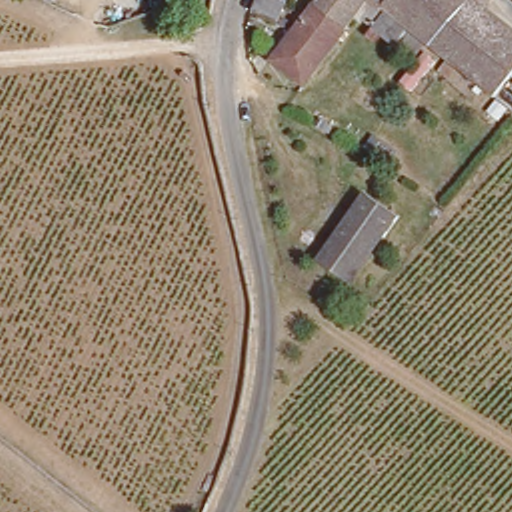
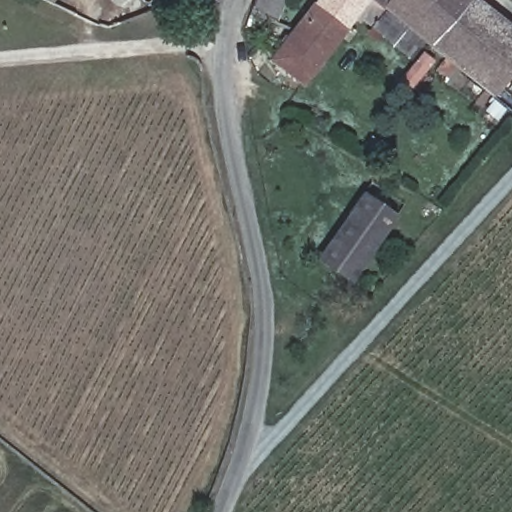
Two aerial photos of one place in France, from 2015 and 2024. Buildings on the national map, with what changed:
unchanged [(43,0),(58,0),(54,5),(43,0)]
unchanged [(251,10),(255,0),(285,0),(276,20),(251,10)]
unchanged [(300,79),(269,55),(290,28),(311,0),(316,0),(344,21),(300,79)]
unchanged [(316,0),(359,0),(344,21),(316,0)]
unchanged [(468,0),(489,0),(497,7),(494,9),(480,27),(512,53),(512,110),(499,99),(478,82),(460,67),(438,49),(422,36),(421,35),(383,4),(382,6),(375,0),(434,0),(455,16),(468,0)]
unchanged [(434,0),(468,0),(455,16),(434,0)]
unchanged [(512,53),(480,27),(494,9),(512,24),(512,53)]
unchanged [(365,191),(397,217),(379,238),(347,212),(365,191)]
unchanged [(379,238),(346,278),(314,252),(347,212),(379,238)]

